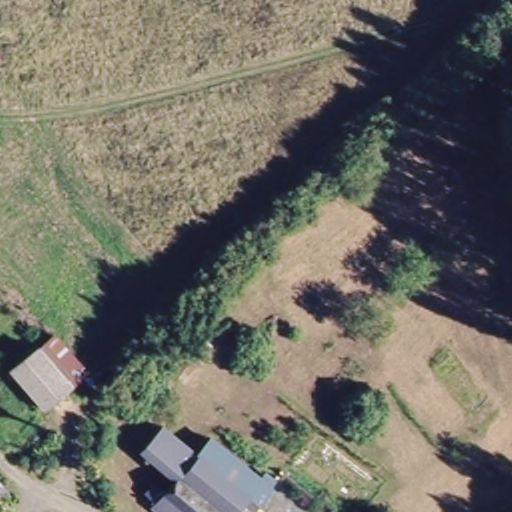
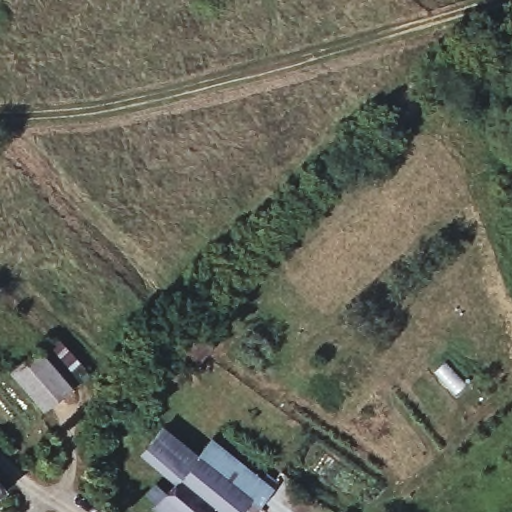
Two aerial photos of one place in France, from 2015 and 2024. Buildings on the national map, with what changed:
unchanged [(45,348),(79,386),(54,408),(22,370),(45,348)]
unchanged [(161,493),(172,480),(136,448),(155,426),(191,457),(209,436),(266,490),(248,511),(242,507),(238,512),(151,512),(147,510),(152,504),(142,495),(151,485),(161,493)]
unchanged [(0,510),(0,494),(7,503),(0,510)]

